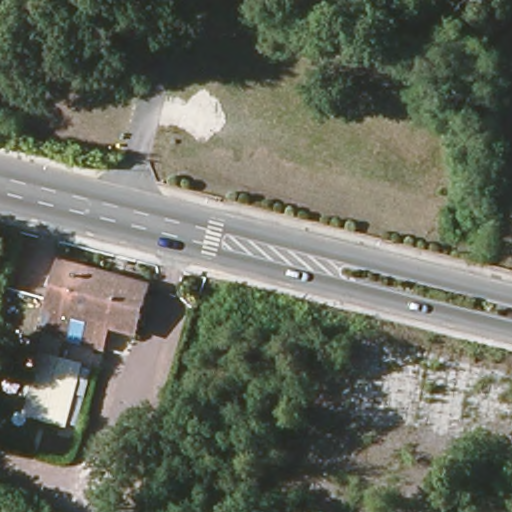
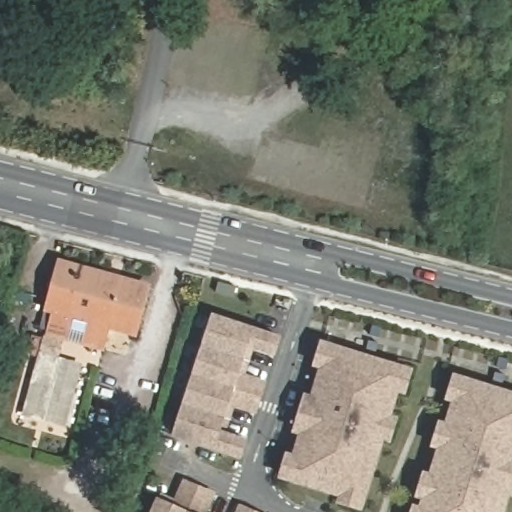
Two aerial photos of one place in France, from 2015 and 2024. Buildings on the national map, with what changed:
unchanged [(145,287),(130,336),(106,328),(99,349),(44,334),(50,312),(43,310),(56,261),(145,287)]
new [(237,286),(233,300),(214,295),(217,281),(237,286)]
new [(230,402),(215,447),(175,434),(215,315),(255,328),(282,337),(276,353),(249,344),(240,373),(267,381),(262,396),(257,411),(230,402)]
unchanged [(40,344),(35,360),(29,359),(34,343),(40,344)]
new [(294,480),(313,419),(321,422),(324,412),(316,409),(335,347),(410,370),(369,503),(294,480)]
unchanged [(82,372),(66,430),(28,420),(44,362),(82,372)]
new [(512,492),(512,494),(506,512),(425,512),(466,380),(512,395),(512,482),(508,481),(505,490),(512,492)]
new [(215,447),(221,431),(248,439),(242,456),(215,447)]
new [(190,481),(204,488),(219,494),(211,512),(158,512),(164,500),(178,507),(190,481)]
new [(246,506),(258,512),(244,512),(246,506)]

